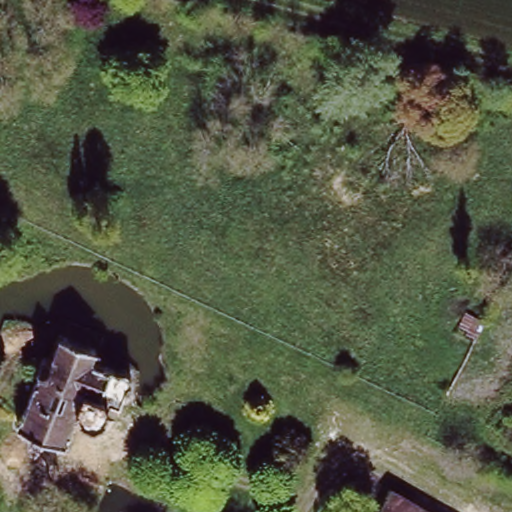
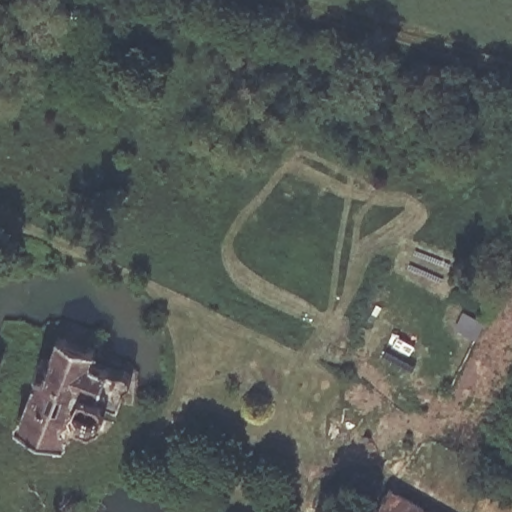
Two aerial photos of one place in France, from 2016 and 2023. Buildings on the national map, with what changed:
unchanged [(47,358),(58,329),(98,345),(95,353),(138,371),(125,406),(112,402),(104,427),(79,416),(73,431),(71,438),(68,443),(63,446),(54,442),(51,436),(29,426),(21,430),(12,425),(11,421),(13,411),(31,371),(37,357),(41,357),(47,358)]
unchanged [(363,512),(361,511),(378,478),(437,512),(363,512)]

